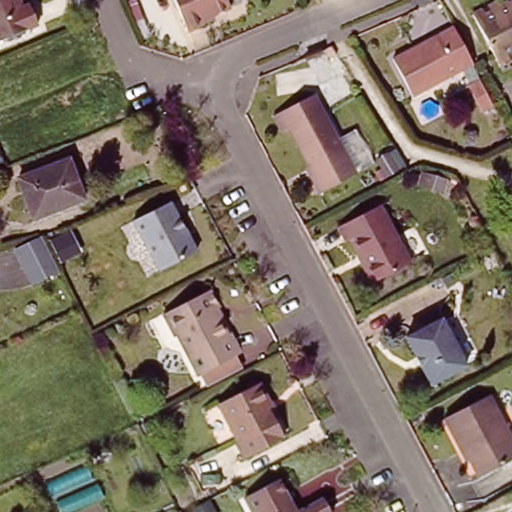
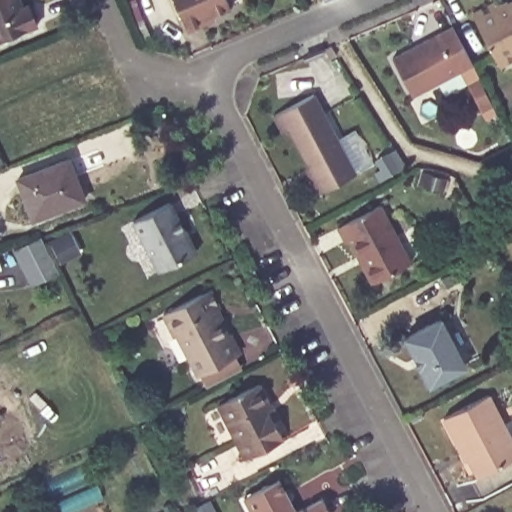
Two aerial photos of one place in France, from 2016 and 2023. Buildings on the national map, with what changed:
unchanged [(22,8),(29,5),(37,25),(0,42),(0,0),(19,0),(22,8)]
unchanged [(202,20),(204,25),(187,31),(174,0),(227,0),(230,8),(202,20)]
unchanged [(500,66),(472,15),(497,1),(502,10),(506,11),(508,4),(512,2),(512,60),(500,66)]
unchanged [(473,65),(413,96),(393,59),(453,26),(473,65)]
unchanged [(487,95),(478,100),(470,84),(479,80),(487,95)]
unchanged [(356,175),(320,194),(310,175),(313,174),(290,130),(283,133),(274,116),(315,95),(356,175)]
unchanged [(27,210),(17,184),(69,165),(84,205),(39,222),(32,225),(27,210)]
unchanged [(447,180),(443,192),(418,185),(422,173),(447,180)]
unchanged [(410,258),(373,278),(350,235),(347,237),(338,222),(380,200),(410,258)]
unchanged [(137,221),(174,202),(192,237),(193,236),(202,251),(165,271),(137,221)]
unchanged [(54,276),(26,287),(8,251),(37,241),(54,276)]
unchanged [(220,310),(242,354),(203,375),(182,335),(180,336),(168,314),(215,290),(224,307),(220,310)]
unchanged [(465,366),(430,385),(405,338),(441,320),(465,366)]
unchanged [(258,383),(270,405),(277,418),(273,420),(283,438),(245,458),(218,405),(258,383)]
unchanged [(460,444),(444,414),(489,390),(512,435),(512,455),(478,472),(468,455),(466,456),(460,444)]
unchanged [(248,493),(283,475),(300,507),(327,493),(336,510),(333,512),(259,512),(248,493)]
unchanged [(205,501),(211,512),(185,512),(205,501)]

